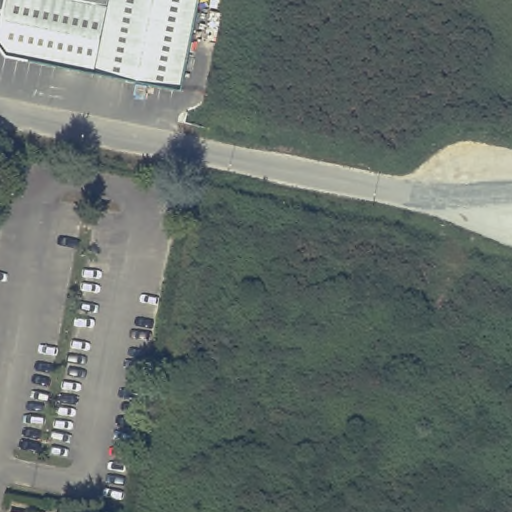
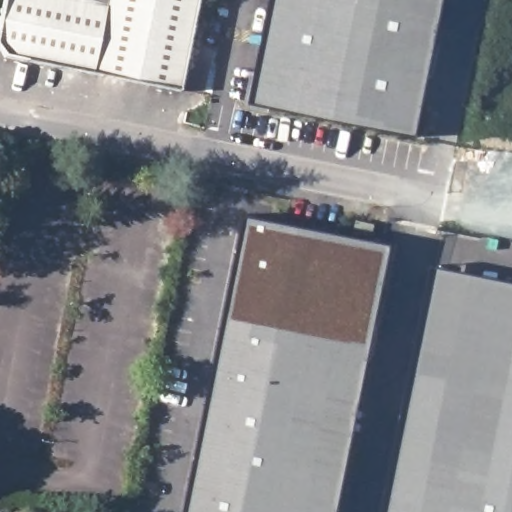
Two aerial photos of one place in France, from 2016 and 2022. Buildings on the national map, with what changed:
unchanged [(103,10),(105,0),(198,0),(179,92),(4,55),(0,50),(0,15),(3,0),(79,0),(103,10)]
unchanged [(103,10),(79,0),(105,0),(103,10)]
new [(251,104),(272,0),(446,0),(418,136),(251,104)]
new [(337,512),(186,512),(246,215),(392,244),(337,512)]
new [(382,512),(432,265),(512,281),(512,512),(382,512)]

